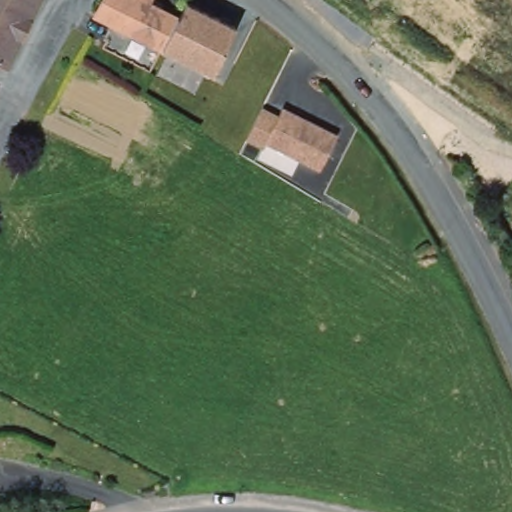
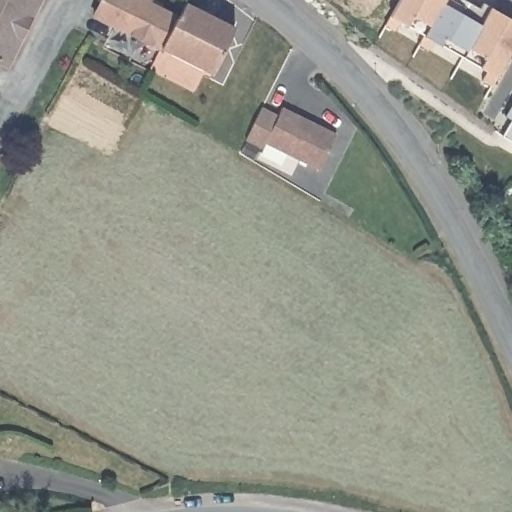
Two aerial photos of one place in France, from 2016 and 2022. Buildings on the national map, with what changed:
unchanged [(0,65),(0,0),(42,0),(6,68),(0,65)]
unchanged [(103,0),(153,0),(150,5),(181,20),(180,21),(165,51),(96,16),(103,0)]
new [(390,15),(399,0),(445,0),(444,2),(480,23),(490,6),(512,19),(512,47),(496,75),(408,25),(390,15)]
unchanged [(238,31),(215,77),(165,51),(180,21),(181,20),(188,5),(192,6),(238,31)]
new [(502,135),(512,119),(505,115),(512,102),(512,141),(502,135)]
unchanged [(279,116),(283,108),(338,135),(320,171),(266,144),(264,150),(246,141),(258,115),(262,108),(279,116)]

